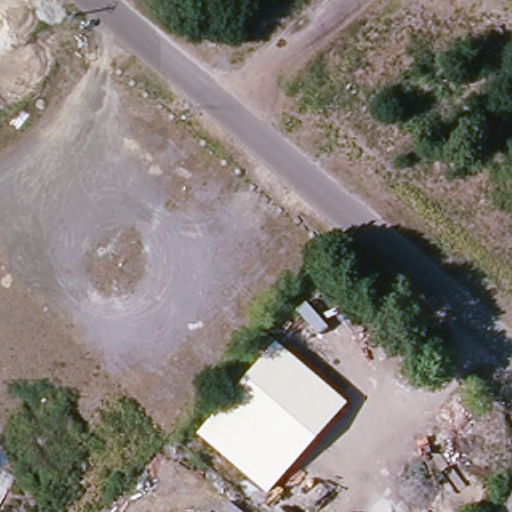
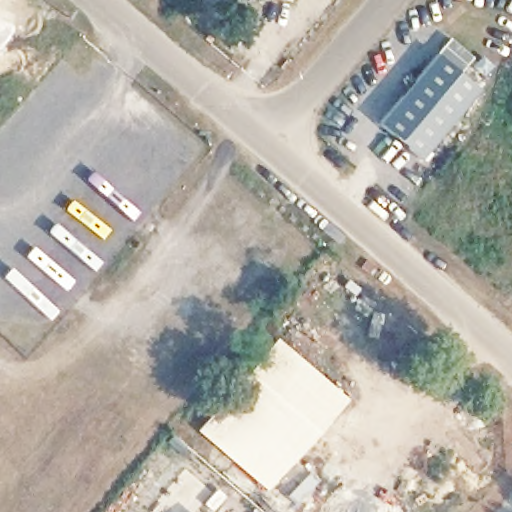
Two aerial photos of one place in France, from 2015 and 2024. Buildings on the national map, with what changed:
new [(449,37),(473,58),(462,72),(480,89),(421,160),(375,124),(449,37)]
unchanged [(245,433),(251,440),(229,465),(197,436),(276,341),(308,365),(245,433)]
unchanged [(349,400),(266,492),(232,462),(251,440),(245,433),(308,365),(349,400)]

